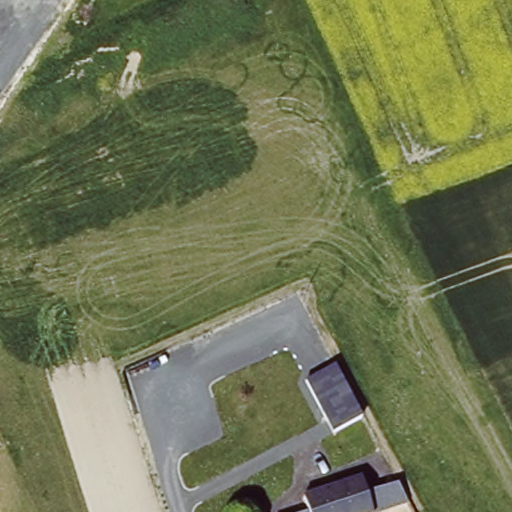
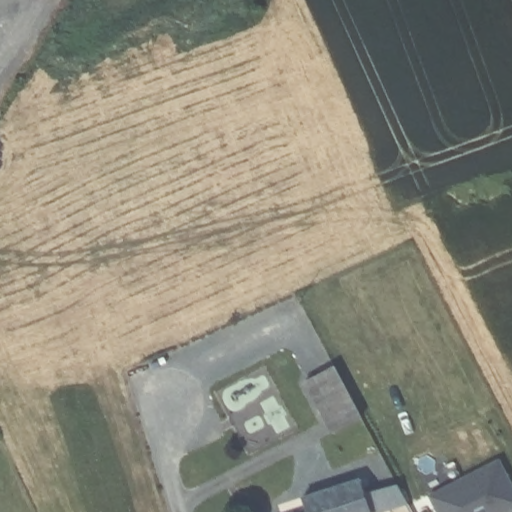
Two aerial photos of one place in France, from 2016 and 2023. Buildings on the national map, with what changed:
unchanged [(335,365),(362,417),(332,432),(306,380),(335,365)]
new [(430,496),(502,459),(512,480),(512,511),(510,512),(438,512),(430,496)]
unchanged [(365,478),(370,495),(397,486),(406,503),(377,512),(310,512),(305,496),(365,478)]

